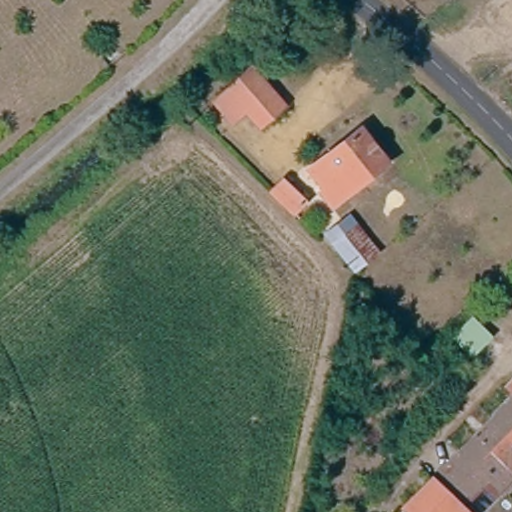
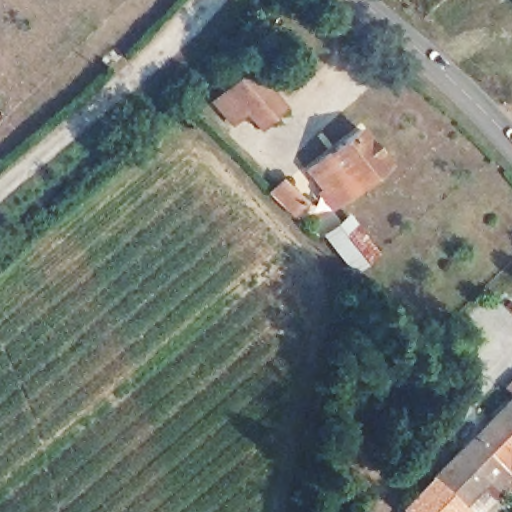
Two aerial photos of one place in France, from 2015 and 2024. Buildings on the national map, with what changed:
unchanged [(264,133),(248,115),(234,125),(215,101),(253,69),(275,94),(291,112),(264,133)]
unchanged [(320,169),(333,158),(365,132),(394,165),(349,201),(320,169)]
unchanged [(271,200),(285,186),(304,205),(292,220),(271,200)]
unchanged [(322,235),(348,215),(379,251),(350,273),(322,235)]
unchanged [(403,512),(399,508),(512,398),(512,485),(487,512),(403,512)]

